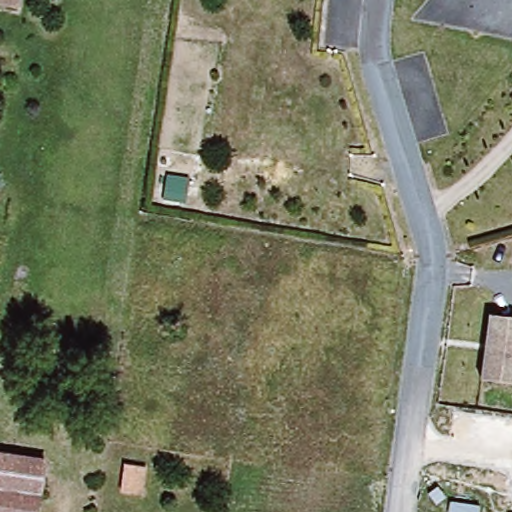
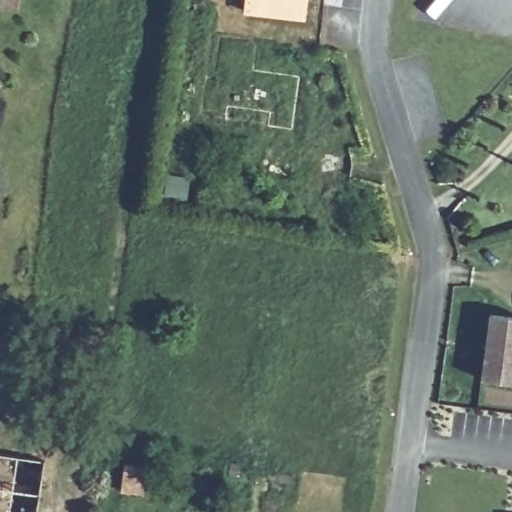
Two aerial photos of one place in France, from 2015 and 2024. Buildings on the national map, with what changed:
unchanged [(0,0),(19,0),(18,8),(0,6),(0,0)]
new [(242,0),(306,0),(303,21),(241,12),(242,0)]
unchanged [(490,313),(512,315),(512,379),(482,375),(490,313)]
unchanged [(37,512),(0,512),(0,454),(45,460),(37,512)]
unchanged [(145,468),(141,495),(121,493),(125,465),(145,468)]

